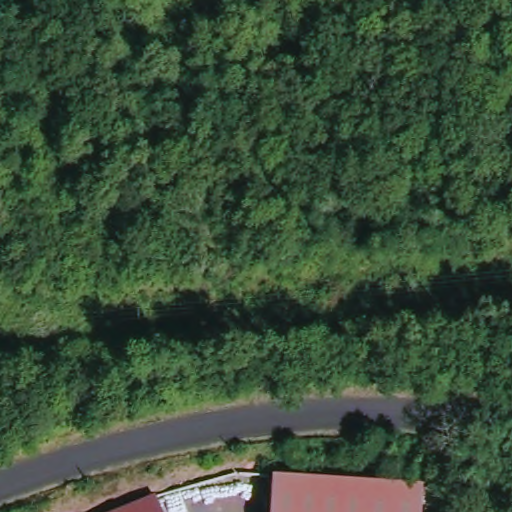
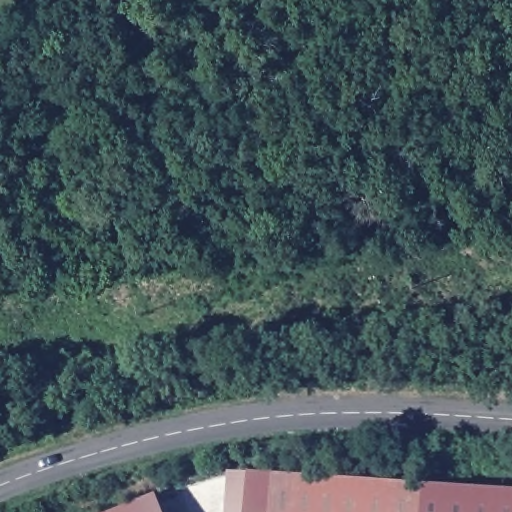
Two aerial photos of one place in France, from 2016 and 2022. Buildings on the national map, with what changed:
unchanged [(272,512),(275,473),(425,486),(423,512),(272,512)]
new [(512,492),(512,512),(423,512),(425,486),(512,492)]
unchanged [(162,512),(113,512),(155,495),(162,512)]

